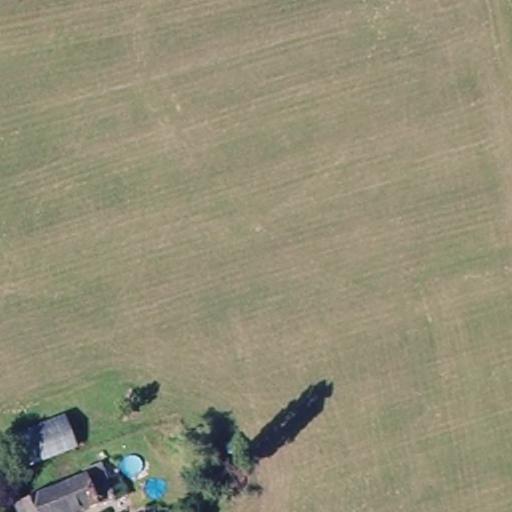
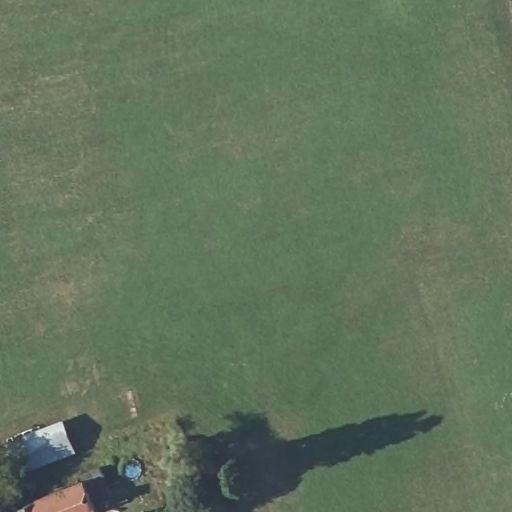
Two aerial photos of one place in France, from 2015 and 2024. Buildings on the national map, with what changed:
unchanged [(62,428),(72,457),(17,477),(5,450),(62,428)]
unchanged [(82,476),(101,470),(119,506),(102,512),(19,512),(18,509),(86,484),(82,476)]

